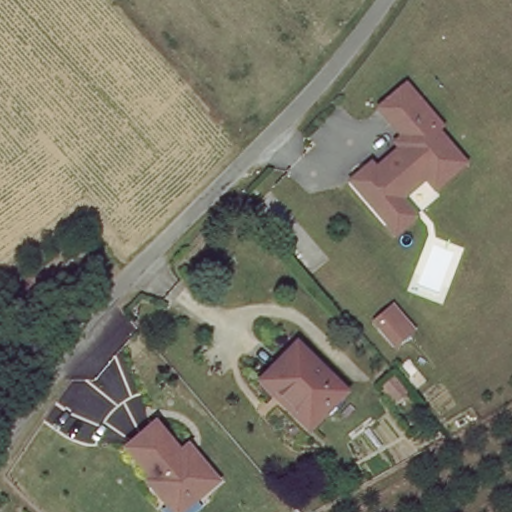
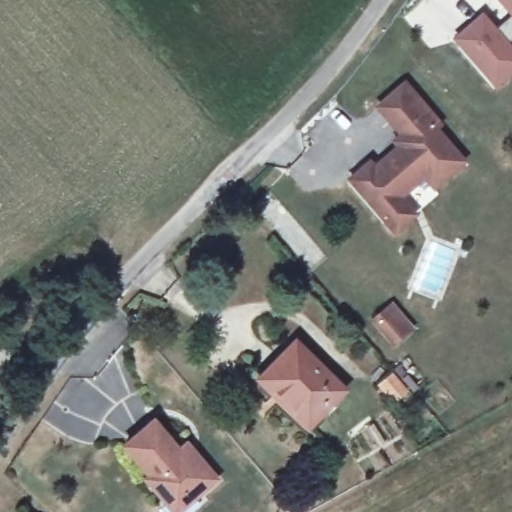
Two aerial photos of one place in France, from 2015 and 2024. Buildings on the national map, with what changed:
new [(507,43),(512,48),(512,75),(493,89),(450,39),(482,11),(497,29),(511,16),(496,0),(512,0),(512,39),(507,43)]
unchanged [(390,229),(380,218),(348,179),(368,162),(372,167),(396,146),(392,141),(402,133),(378,104),(403,84),(438,124),(433,129),(461,161),(431,187),(421,175),(397,196),(400,200),(410,212),(390,229)]
unchanged [(375,316),(386,329),(397,320),(405,330),(389,344),(369,321),(375,316)]
unchanged [(277,400),(258,381),(295,344),(343,392),(312,424),(307,429),(277,400)]
unchanged [(408,392),(394,406),(379,387),(392,374),(408,392)]
unchanged [(174,449),(182,442),(215,483),(179,512),(168,512),(141,485),(143,478),(116,448),(149,424),(174,449)]

